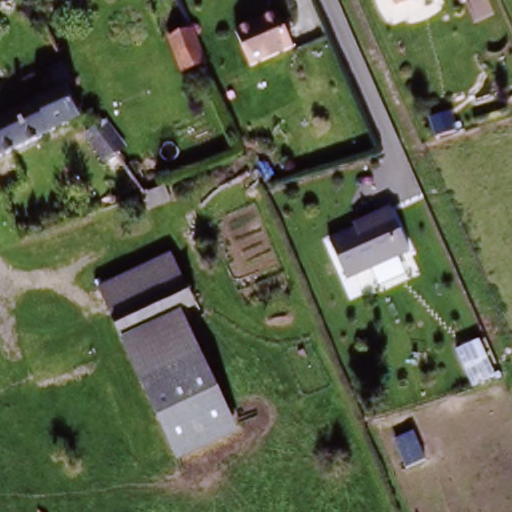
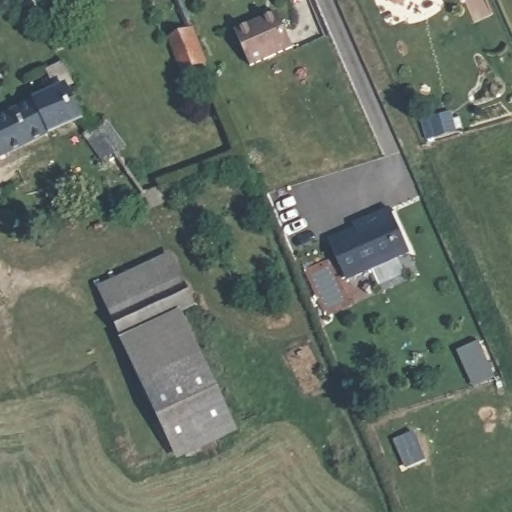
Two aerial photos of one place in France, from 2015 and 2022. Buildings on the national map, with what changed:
unchanged [(393,0),(427,0),(398,12),(393,0)]
unchanged [(294,50),(252,69),(238,35),(279,17),(294,50)]
unchanged [(206,69),(184,78),(170,45),(193,36),(206,69)]
unchanged [(61,69),(63,67),(74,89),(68,92),(82,122),(0,161),(0,124),(54,98),(44,76),(61,69)]
unchanged [(106,166),(97,154),(108,146),(117,159),(106,166)]
unchanged [(144,197),(165,189),(169,200),(149,207),(144,197)]
unchanged [(404,255),(340,282),(323,245),(353,231),(351,226),(370,217),(385,211),(404,255)]
unchanged [(184,282),(114,317),(100,288),(170,255),(184,282)]
unchanged [(184,282),(197,308),(163,325),(127,342),(114,317),(184,282)]
unchanged [(203,360),(146,387),(125,345),(182,317),(203,360)]
unchanged [(237,430),(179,457),(146,387),(203,360),(237,430)]

